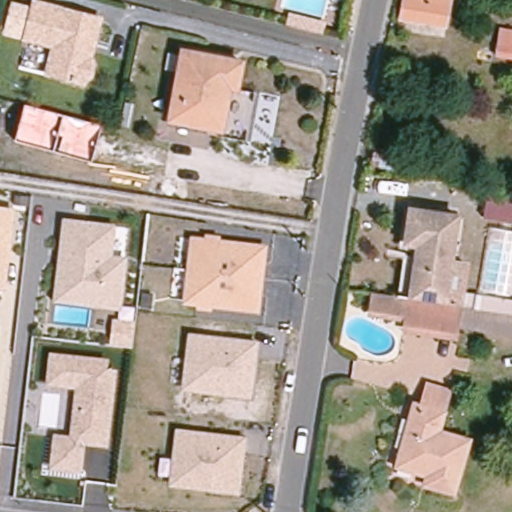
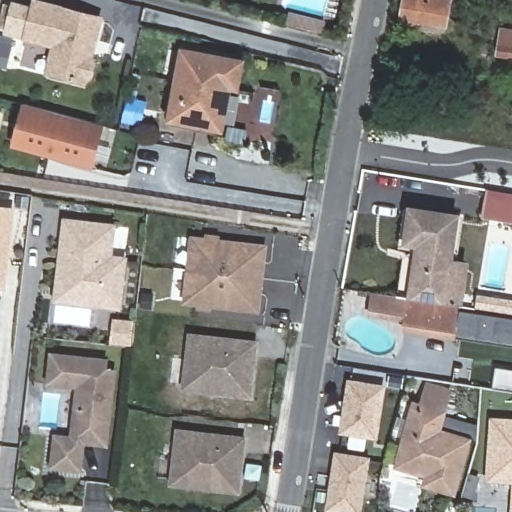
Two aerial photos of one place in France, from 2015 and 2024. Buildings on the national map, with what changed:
unchanged [(90,70),(88,82),(81,85),(80,88),(44,79),(51,51),(22,44),(24,39),(0,32),(0,26),(6,0),(31,7),(97,24),(93,42),(88,60),(87,64),(90,70)]
unchanged [(401,17),(404,0),(452,0),(448,26),(401,17)]
unchanged [(512,31),(512,57),(503,56),(507,30),(512,31)]
unchanged [(238,88),(230,87),(222,130),(171,120),(177,90),(184,91),(186,82),(179,80),(184,51),(242,62),(238,88)]
unchanged [(91,160),(15,140),(24,104),(101,125),(91,160)]
unchanged [(0,139),(0,113),(4,114),(0,139)]
unchanged [(485,220),(491,192),(512,195),(512,222),(485,220)]
unchanged [(0,289),(0,205),(15,207),(6,290),(0,289)]
unchanged [(416,265),(422,262),(424,246),(407,243),(411,209),(458,216),(447,293),(461,295),(459,306),(411,298),(416,265)]
unchanged [(123,308),(52,301),(63,215),(116,221),(113,254),(129,256),(123,308)]
unchanged [(260,312),(180,303),(190,235),(268,244),(260,312)]
unchanged [(369,315),(374,292),(409,298),(411,298),(459,306),(477,308),(478,297),(512,303),(512,334),(459,326),(458,335),(405,326),(406,321),(369,315)]
unchanged [(131,347),(108,344),(111,316),(134,319),(131,347)]
unchanged [(251,397),(181,389),(187,331),(258,338),(251,397)]
unchanged [(107,367),(118,368),(109,446),(85,443),(83,472),(48,469),(51,432),(69,433),(74,388),(44,385),(49,350),(108,356),(107,367)]
new [(378,437),(339,433),(348,378),(386,384),(378,437)]
unchanged [(436,477),(398,466),(412,417),(419,420),(429,385),(450,391),(444,412),(439,431),(469,441),(454,492),(433,486),(436,477)]
new [(487,481),(491,417),(512,417),(512,481),(487,481)]
unchanged [(239,495),(169,487),(176,427),(247,436),(239,495)]
new [(362,512),(343,512),(324,510),(334,451),(370,456),(362,512)]
new [(512,492),(512,512),(511,512),(512,492)]

